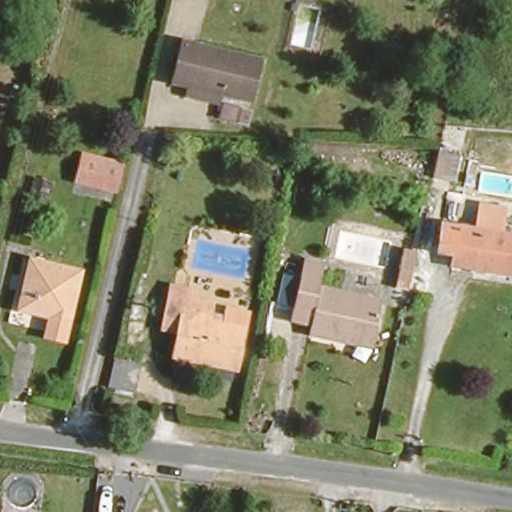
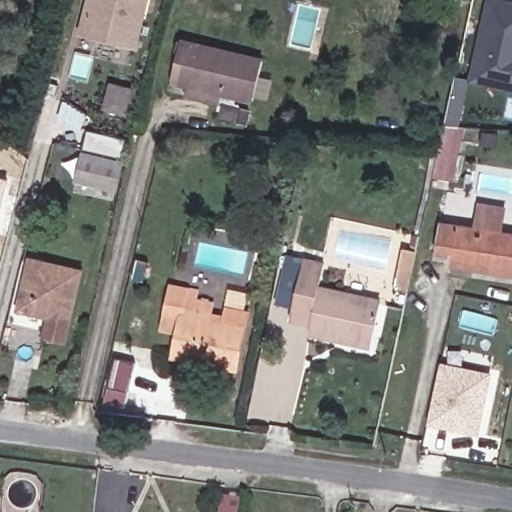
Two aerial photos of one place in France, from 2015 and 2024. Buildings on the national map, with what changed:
new [(147,0),(136,46),(81,32),(88,0),(147,0)]
new [(473,76),(492,0),(509,0),(512,1),(512,86),(473,76)]
unchanged [(187,94),(190,84),(173,80),(184,36),(263,56),(253,100),(225,92),(222,103),(187,94)]
unchanged [(461,154),(455,181),(433,177),(439,152),(440,150),(461,154)]
unchanged [(114,191),(75,182),(80,156),(120,164),(114,191)]
new [(0,177),(7,179),(0,210),(0,177)]
unchanged [(29,192),(34,177),(49,181),(44,197),(29,192)]
unchanged [(454,254),(438,252),(443,224),(512,235),(512,274),(477,268),(452,266),(454,254)]
unchanged [(409,291),(396,288),(404,249),(417,252),(409,291)]
unchanged [(305,260),(324,265),(319,287),(382,302),(372,348),(308,335),(311,323),(292,320),(305,260)]
unchanged [(69,321),(20,308),(32,261),(81,272),(69,321)]
unchanged [(176,355),(182,321),(166,318),(172,291),(175,291),(189,293),(189,295),(197,296),(196,305),(212,308),(209,327),(245,335),(237,374),(199,367),(174,362),(176,355)]
unchanged [(142,365),(134,393),(109,387),(117,358),(142,365)]
new [(493,372),(480,435),(427,423),(441,363),(493,372)]
new [(221,496),(239,497),(237,512),(219,512),(221,496)]

